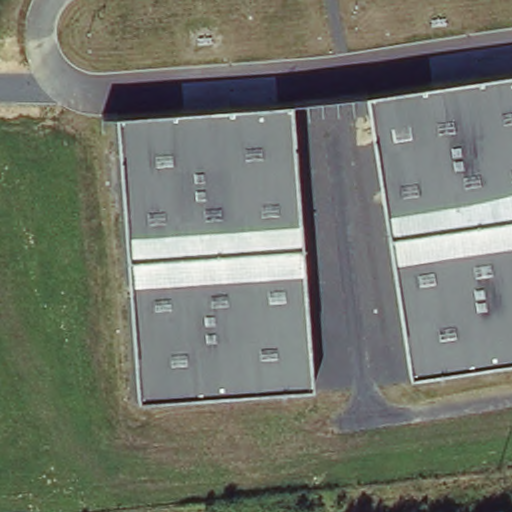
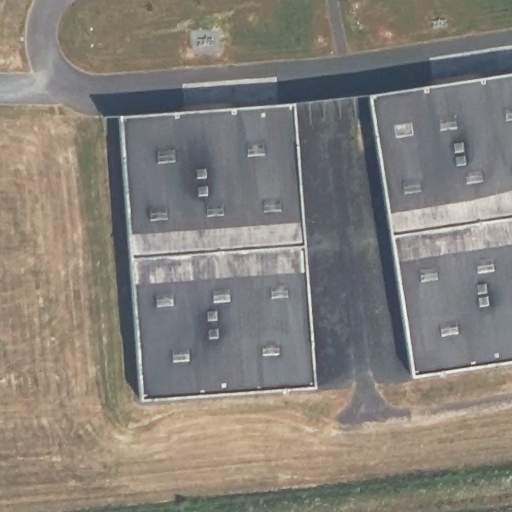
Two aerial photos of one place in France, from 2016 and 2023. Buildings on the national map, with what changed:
unchanged [(409,375),(368,95),(512,74),(512,359),(409,375)]
unchanged [(313,387),(139,399),(119,117),(291,104),(313,387)]

